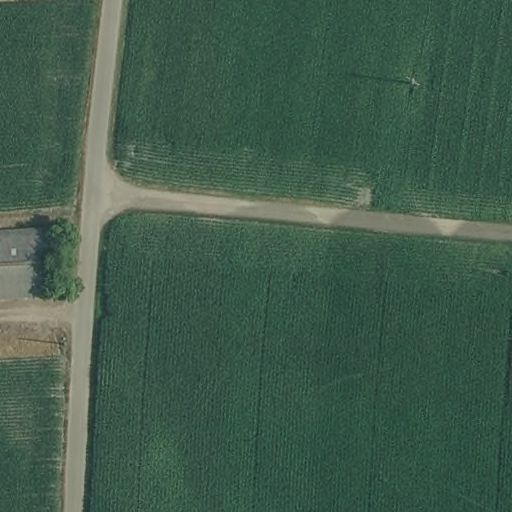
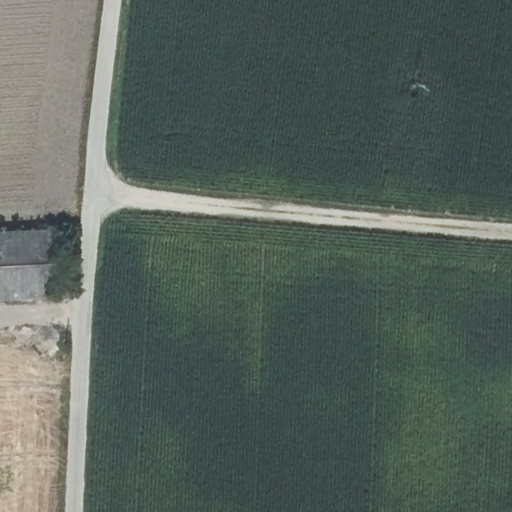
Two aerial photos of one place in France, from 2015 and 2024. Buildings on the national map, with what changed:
unchanged [(0,297),(0,238),(52,234),(54,293),(0,297)]

